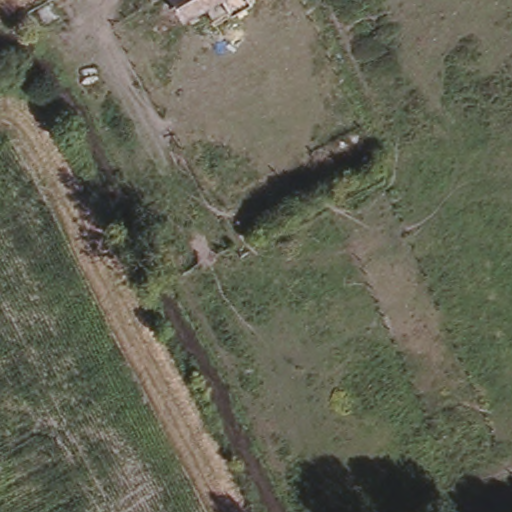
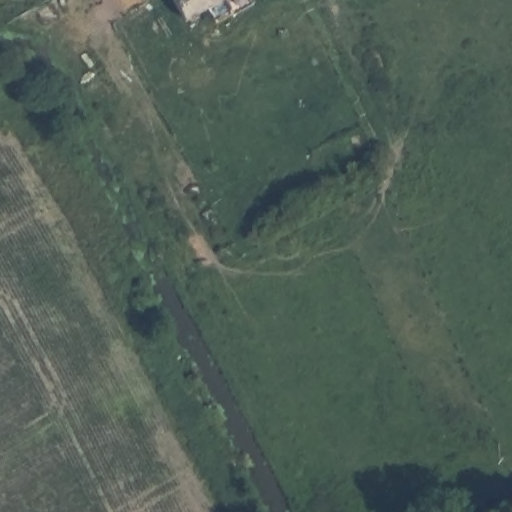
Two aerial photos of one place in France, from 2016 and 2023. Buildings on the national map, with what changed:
unchanged [(176,0),(220,0),(185,17),(176,0)]

